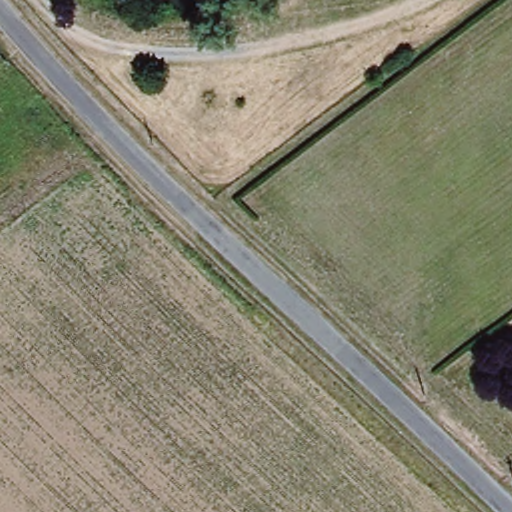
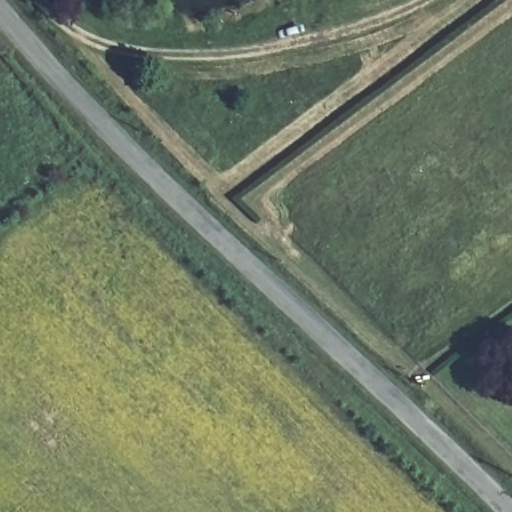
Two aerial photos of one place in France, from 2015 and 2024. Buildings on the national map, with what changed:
[]

